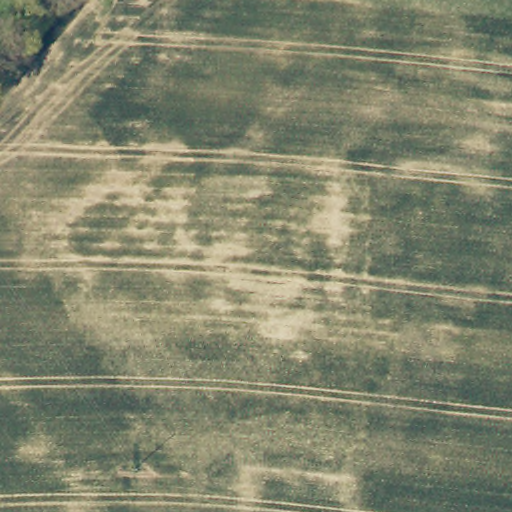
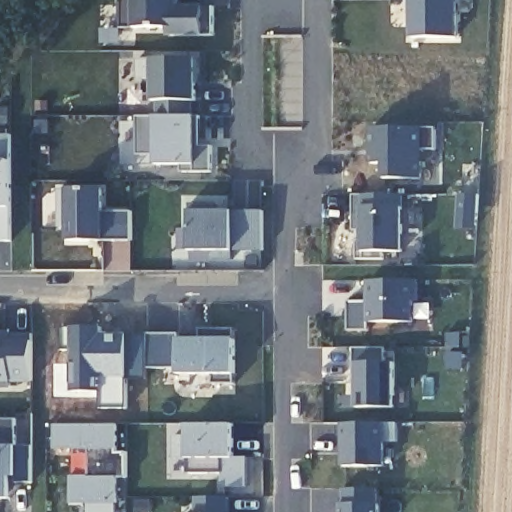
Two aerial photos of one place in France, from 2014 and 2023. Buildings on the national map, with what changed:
new [(212,6),(213,34),(205,34),(205,37),(169,37),(168,27),(135,27),(121,27),(121,0),(179,0),(181,7),(212,6)]
new [(411,37),(411,0),(456,0),(456,37),(411,37)]
new [(195,100),(195,117),(200,116),(199,147),(211,147),(211,171),(179,171),(180,163),(155,164),(155,154),(136,155),(136,117),(154,116),(158,116),(159,102),(151,102),(151,60),(196,59),(195,100)]
new [(436,149),(423,150),(424,179),(383,180),(383,164),(370,163),(370,131),(437,129),(436,149)]
new [(11,207),(11,241),(0,241),(0,135),(12,135),(11,162),(11,207)]
new [(105,241),(69,240),(69,190),(105,189),(104,212),(133,212),(134,240),(105,241)]
new [(404,208),(404,252),(384,252),(383,261),(356,261),(357,232),(353,231),(354,195),(406,194),(404,208)]
new [(264,250),(234,252),(235,260),(213,260),(212,251),(191,251),(191,211),(233,211),(263,210),(264,250)]
new [(416,323),(369,323),(369,332),(348,331),(348,302),(368,302),(368,280),(417,281),(416,323)]
new [(234,337),(235,376),(234,382),(211,382),(212,375),(178,374),(178,367),(146,367),(147,333),(179,333),(179,338),(203,338),(201,330),(235,330),(234,337)]
new [(0,382),(0,333),(31,333),(32,382),(0,382)]
new [(389,362),(395,362),(395,411),(356,410),(356,364),(353,349),(385,348),(389,362)]
new [(32,447),(32,481),(11,480),(10,499),(0,499),(0,419),(16,419),(16,446),(32,447)]
new [(402,442),(385,443),(385,466),(340,467),(340,426),(402,423),(402,442)]
new [(235,456),(248,457),(249,486),(222,486),(222,473),(187,472),(187,459),(175,458),(175,434),(188,433),(188,424),(236,424),(235,456)]
new [(116,453),(125,453),(126,477),(116,478),(117,512),(88,512),(88,506),(70,506),(70,476),(89,475),(88,450),(54,451),(54,425),(119,425),(116,453)]
new [(376,502),(380,503),(380,512),(338,512),(338,506),(342,506),(341,488),(377,487),(376,502)]
new [(228,512),(196,512),(196,495),(229,494),(228,512)]

